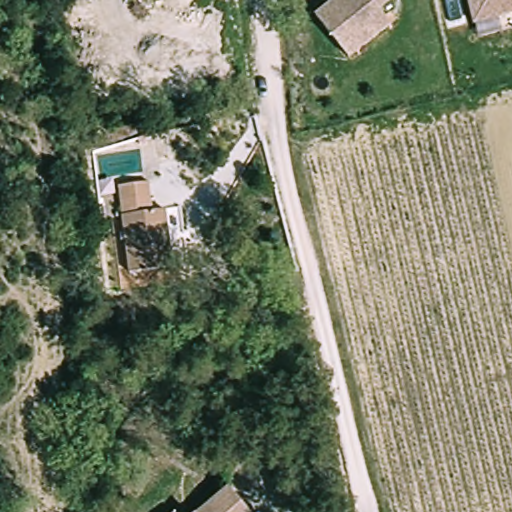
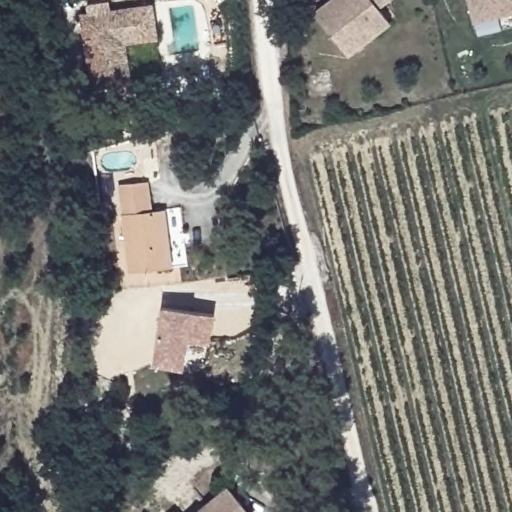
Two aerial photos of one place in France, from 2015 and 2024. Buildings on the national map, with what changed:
new [(160,0),(162,30),(130,33),(135,74),(97,79),(89,7),(151,0),(160,0)]
unchanged [(317,9),(330,0),(393,0),(382,9),(385,13),(392,24),(372,38),(350,54),(317,9)]
unchanged [(477,21),(471,0),(512,0),(512,11),(477,21)]
unchanged [(131,272),(115,187),(140,182),(146,213),(162,210),(172,264),(131,272)]
new [(162,309),(213,312),(211,341),(189,339),(187,367),(158,364),(162,309)]
unchanged [(200,509),(225,486),(254,512),(197,512),(200,509)]

